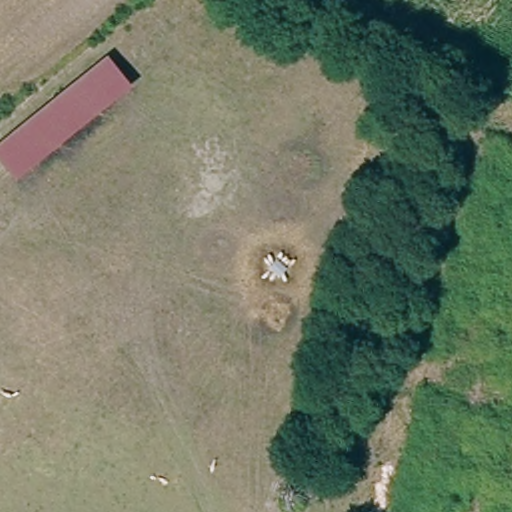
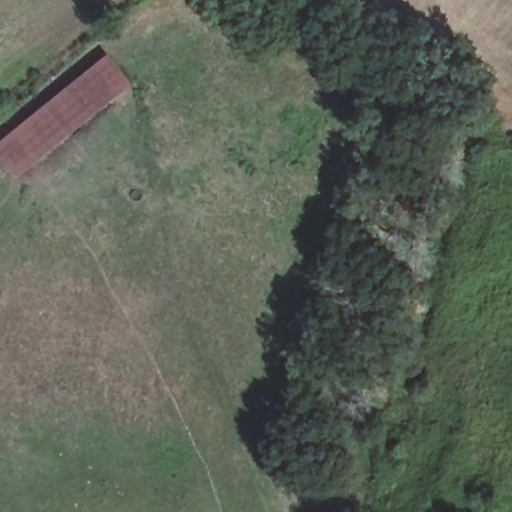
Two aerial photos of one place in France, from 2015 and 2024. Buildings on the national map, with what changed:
unchanged [(128,85),(15,184),(0,167),(0,144),(102,55),(128,85)]

